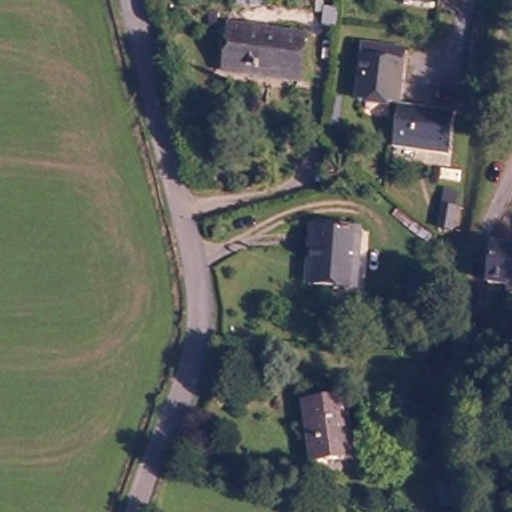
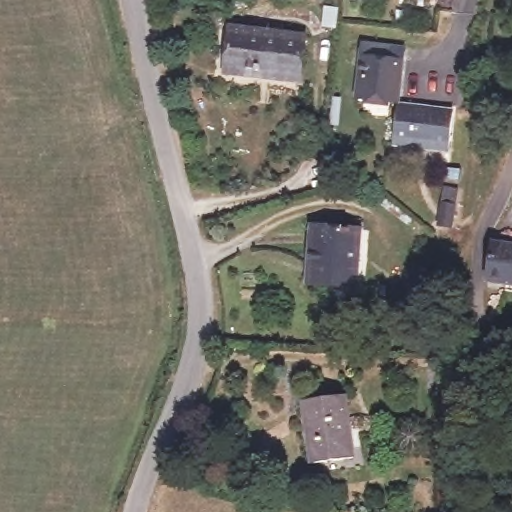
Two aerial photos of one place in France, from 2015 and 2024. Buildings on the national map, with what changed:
unchanged [(226,53),(228,29),(304,39),(300,81),(238,74),(223,71),(226,53)]
unchanged [(360,94),(363,42),(405,43),(399,96),(360,94)]
unchanged [(399,105),(449,111),(446,145),(398,142),(399,105)]
unchanged [(436,189),(444,189),(444,211),(434,210),(436,189)]
unchanged [(312,231),(359,229),(361,287),(315,288),(312,231)]
unchanged [(494,245),(512,245),(512,285),(493,285),(494,245)]
unchanged [(412,263),(429,261),(433,290),(416,293),(412,263)]
unchanged [(312,396),(356,392),(363,453),(320,459),(312,396)]

